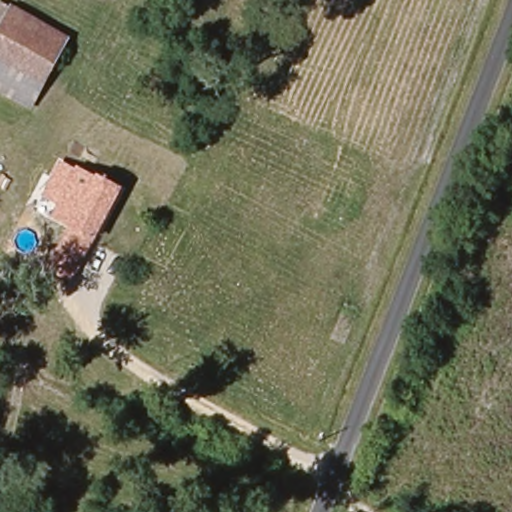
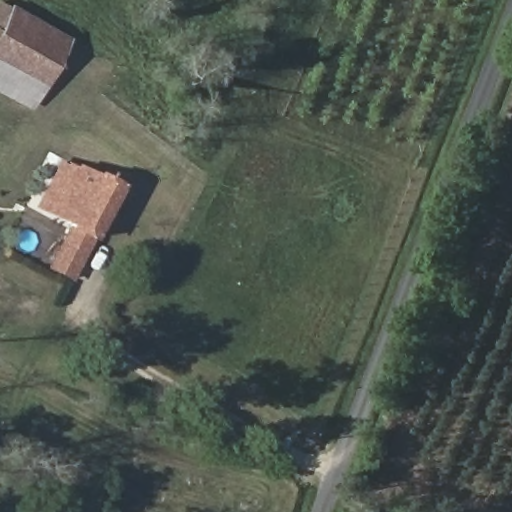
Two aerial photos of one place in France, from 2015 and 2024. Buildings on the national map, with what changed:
unchanged [(0,95),(0,12),(5,5),(70,43),(30,111),(0,95)]
unchanged [(83,230),(85,224),(65,216),(71,200),(57,192),(72,162),(109,180),(111,176),(136,187),(107,241),(83,230)]

